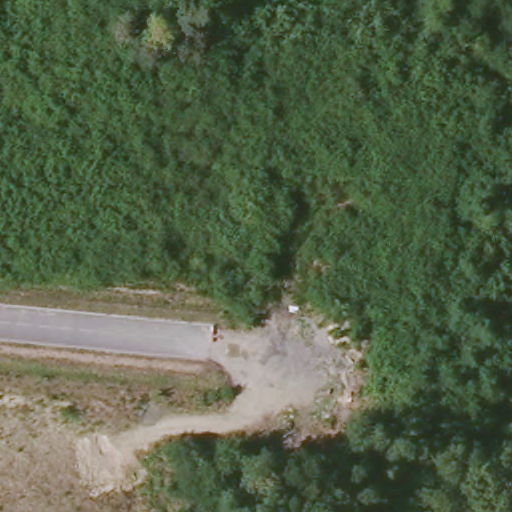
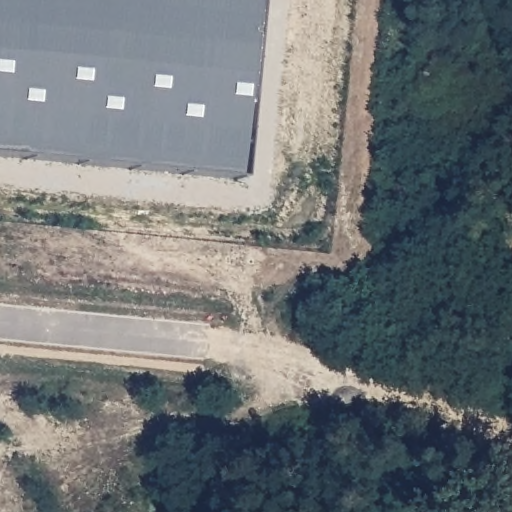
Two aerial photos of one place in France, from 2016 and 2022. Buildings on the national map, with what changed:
new [(0,0),(261,0),(250,182),(0,155),(0,0)]

